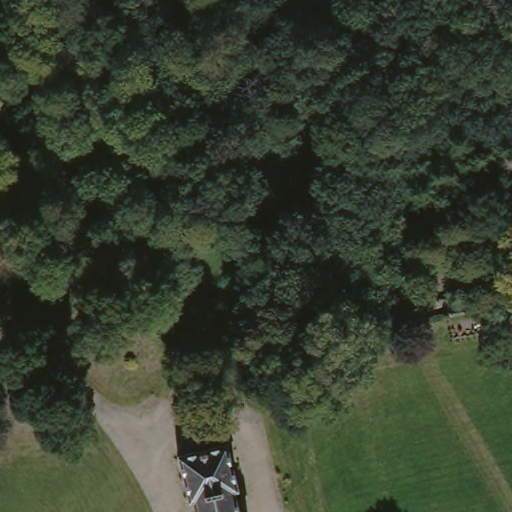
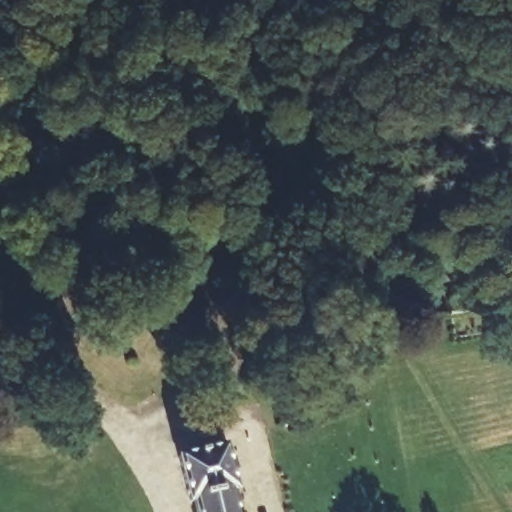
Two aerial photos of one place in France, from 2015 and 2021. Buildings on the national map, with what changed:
unchanged [(180,456),(202,450),(225,445),(233,476),(237,493),(230,494),(234,512),(199,512),(196,502),(190,503),(188,495),(179,456),(180,456)]

